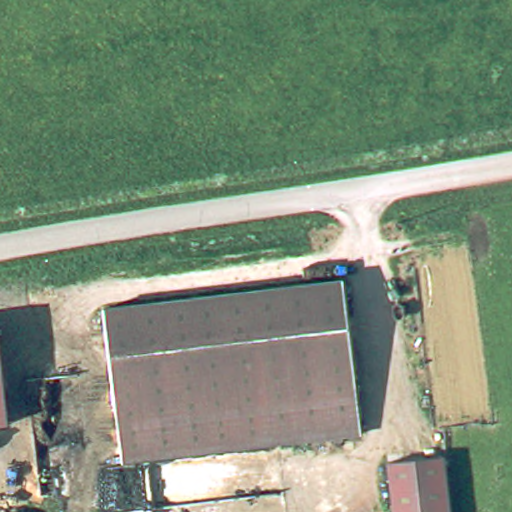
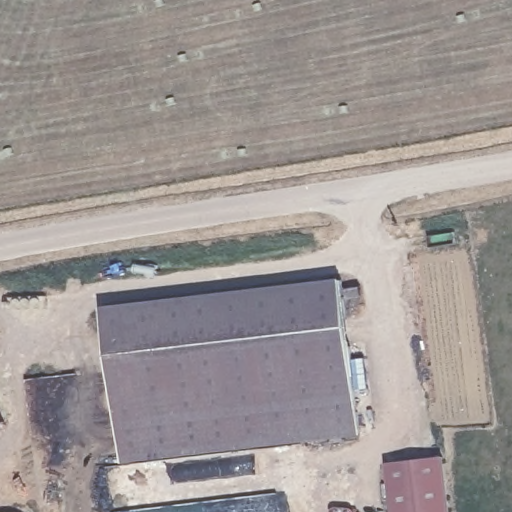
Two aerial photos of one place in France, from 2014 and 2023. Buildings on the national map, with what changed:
unchanged [(342,270),(360,424),(120,452),(102,298),(342,270)]
unchanged [(0,417),(0,368),(5,416),(0,417)]
unchanged [(445,460),(450,512),(391,512),(387,467),(445,460)]

